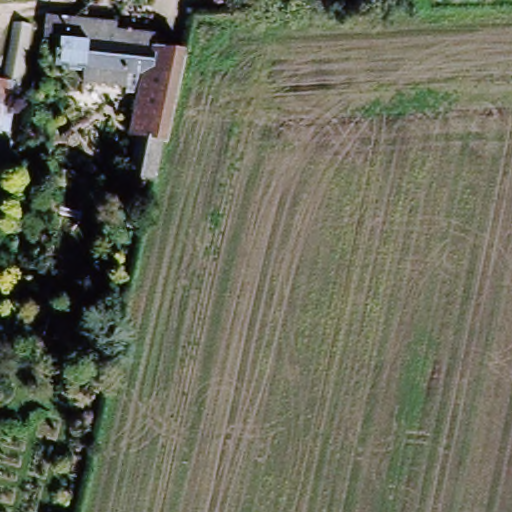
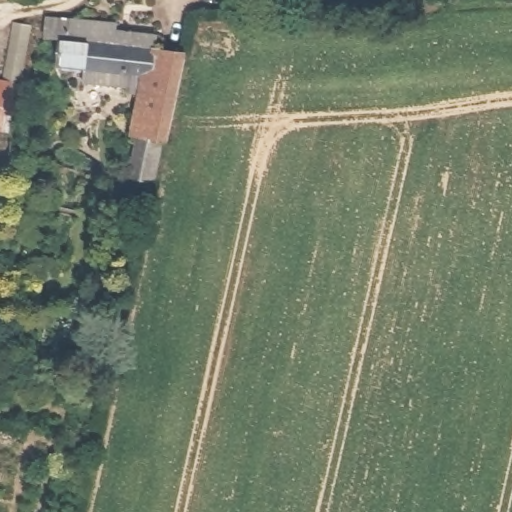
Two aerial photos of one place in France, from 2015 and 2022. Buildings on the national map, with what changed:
unchanged [(163,148),(159,148),(151,185),(129,180),(138,137),(128,135),(141,77),(128,75),(125,86),(77,75),(79,61),(57,56),(64,30),(46,27),(49,14),(74,17),(105,21),(117,22),(161,32),(158,45),(185,52),(163,148)]
unchanged [(18,86),(0,81),(12,30),(31,32),(18,86)]
unchanged [(8,131),(0,129),(0,81),(18,86),(8,131)]
unchanged [(96,351),(47,338),(52,316),(102,329),(96,351)]

